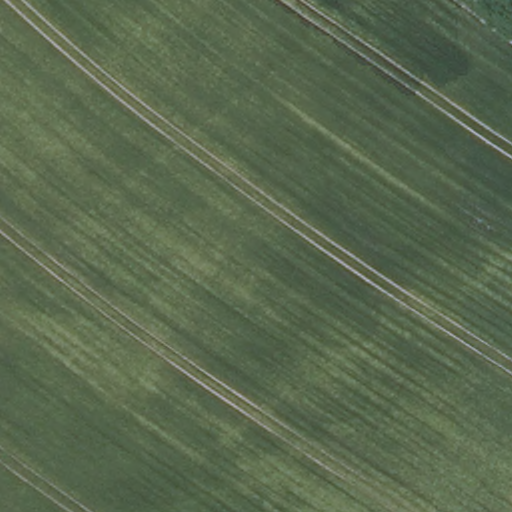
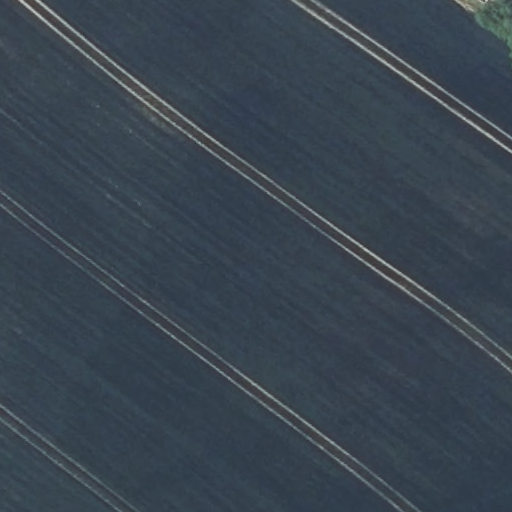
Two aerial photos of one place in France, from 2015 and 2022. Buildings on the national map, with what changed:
[]

